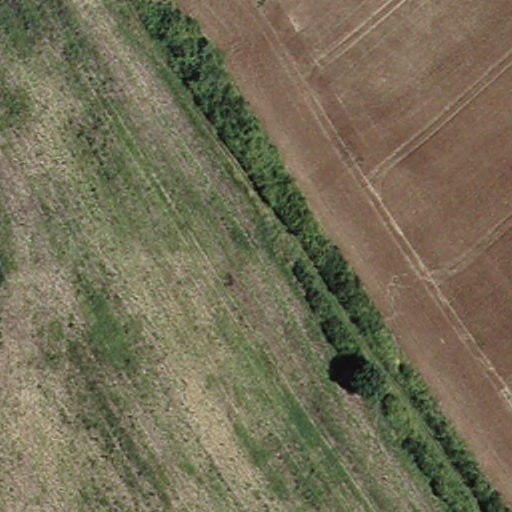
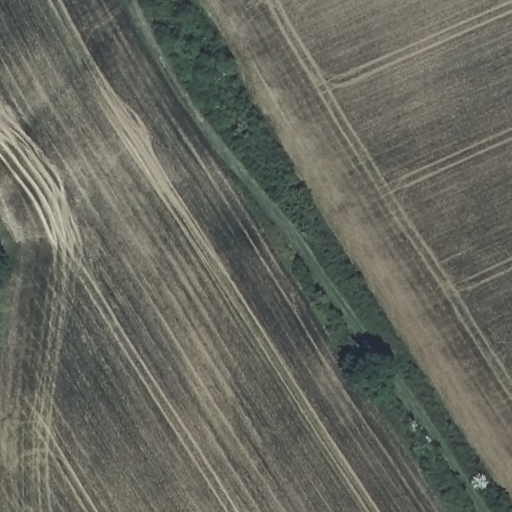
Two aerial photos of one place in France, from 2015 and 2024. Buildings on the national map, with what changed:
[]

